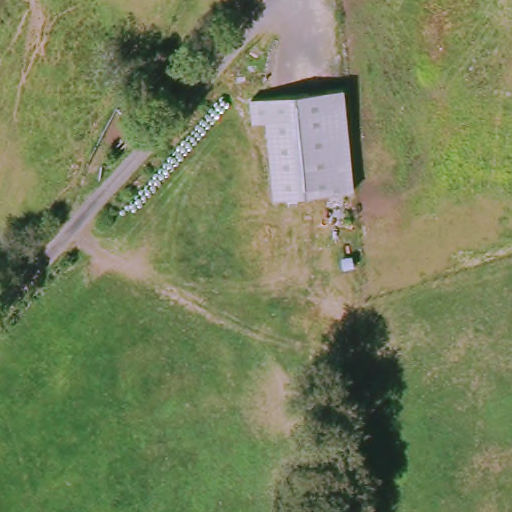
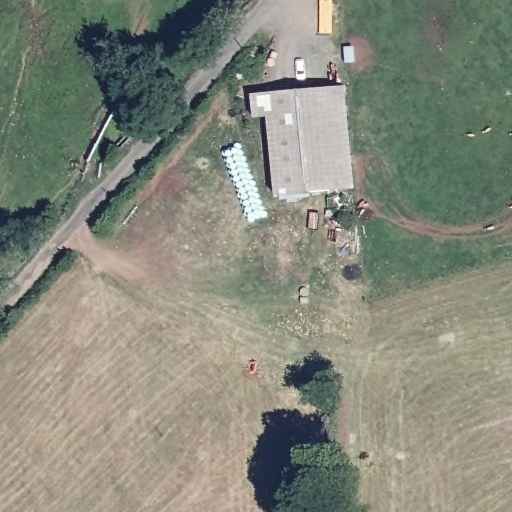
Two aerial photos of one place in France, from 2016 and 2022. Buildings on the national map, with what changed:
unchanged [(255,121),(253,96),(348,87),(358,191),(277,197),(270,120),(255,121)]

